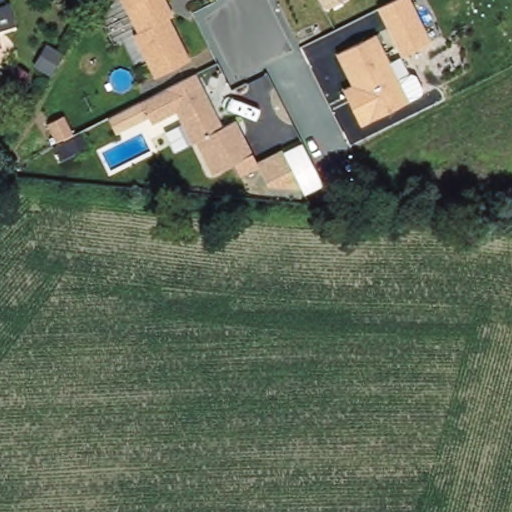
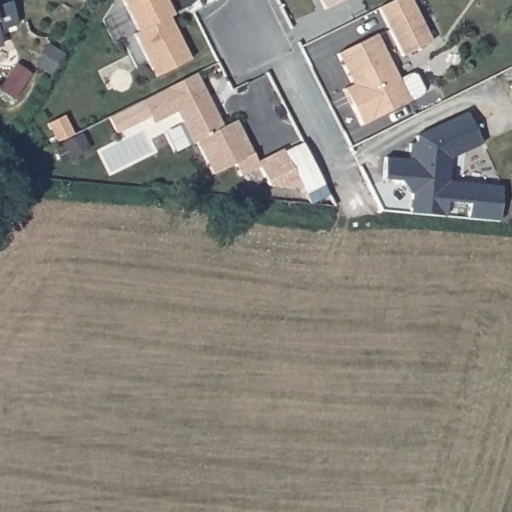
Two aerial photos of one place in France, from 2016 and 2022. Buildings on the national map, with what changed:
unchanged [(6,6),(9,5),(16,26),(0,31),(0,0),(4,0),(6,6)]
unchanged [(166,10),(171,8),(174,14),(169,17),(189,60),(154,77),(133,34),(137,32),(121,0),(161,0),(166,10)]
unchanged [(324,8),(320,0),(340,0),(324,8)]
unchanged [(432,42),(401,57),(377,8),(395,0),(412,0),(432,42)]
unchanged [(409,102),(362,124),(343,88),(352,84),(336,54),(377,33),(409,102)]
unchanged [(66,51),(53,72),(40,64),(53,43),(66,51)]
new [(14,66),(30,75),(14,101),(0,94),(0,89),(14,66)]
unchanged [(222,128),(235,121),(259,167),(239,177),(233,164),(212,175),(196,142),(192,144),(176,112),(152,124),(141,101),(195,74),(222,128)]
new [(406,155),(407,147),(408,139),(414,140),(415,131),(465,108),(479,140),(447,155),(445,178),(499,184),(495,219),(464,215),(465,201),(443,198),(441,213),(406,209),(408,191),(397,176),(380,175),(382,153),(406,155)]

